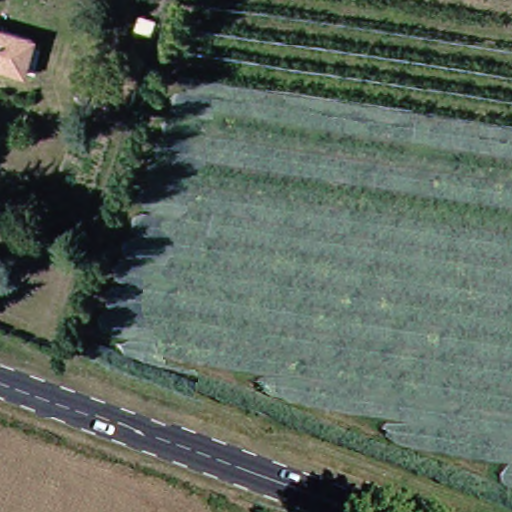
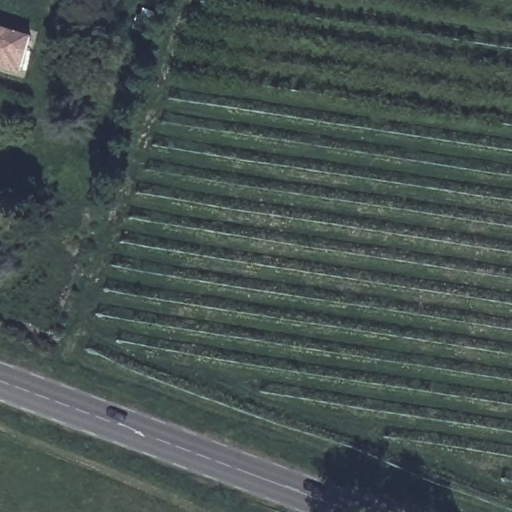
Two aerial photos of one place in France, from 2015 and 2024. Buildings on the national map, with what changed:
unchanged [(0,65),(0,24),(40,34),(28,73),(0,65)]

